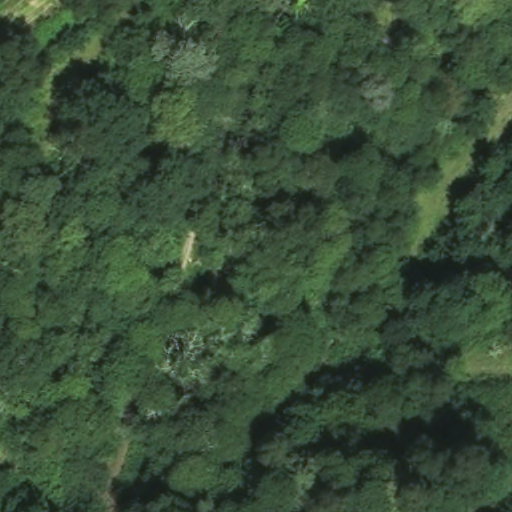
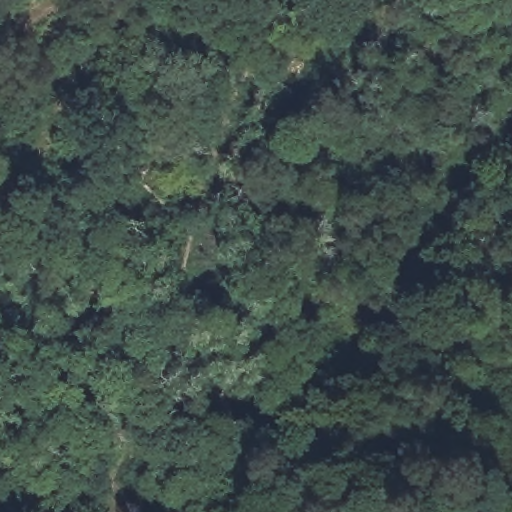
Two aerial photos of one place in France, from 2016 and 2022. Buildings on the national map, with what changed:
unchanged [(98,512),(79,512),(70,497),(85,487),(98,512)]

